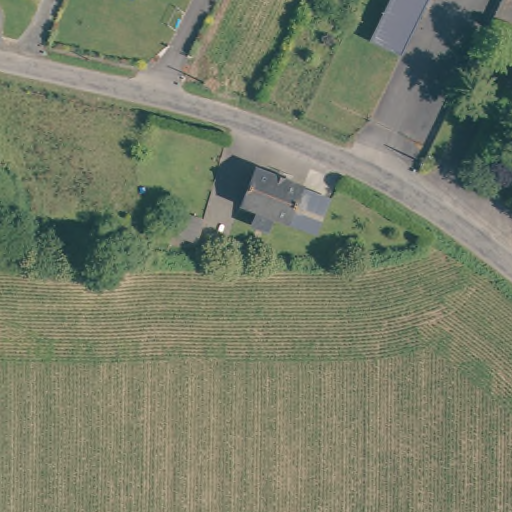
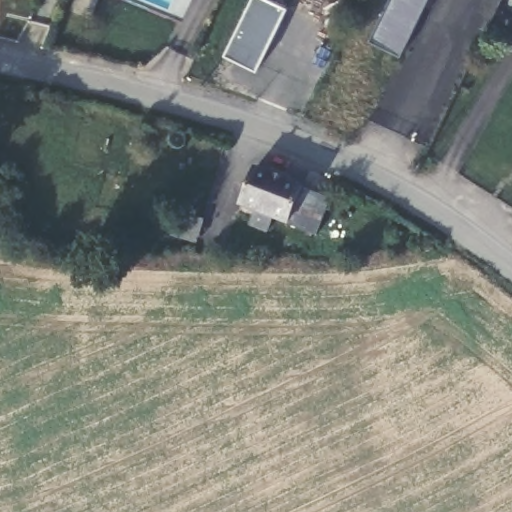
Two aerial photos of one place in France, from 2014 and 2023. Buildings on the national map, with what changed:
new [(256,71),(224,54),(250,0),(273,0),(287,7),(256,71)]
unchanged [(403,59),(371,44),(393,0),(432,0),(403,59)]
unchanged [(252,218),(257,203),(242,198),(255,162),(300,178),(298,183),(287,214),(274,209),(269,224),(252,218)]
unchanged [(298,183),(330,194),(318,228),(286,217),(287,214),(298,183)]
unchanged [(186,237),(161,230),(170,208),(195,215),(186,237)]

